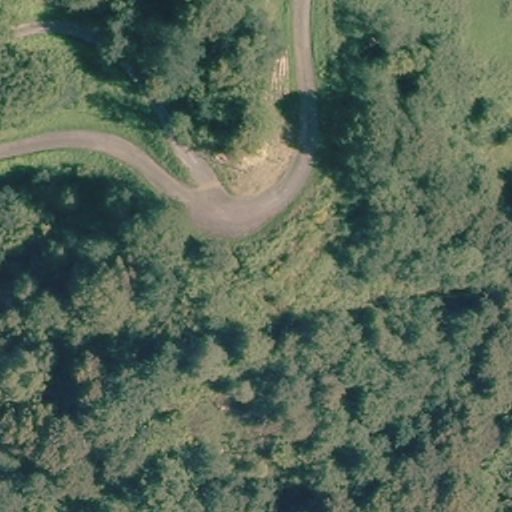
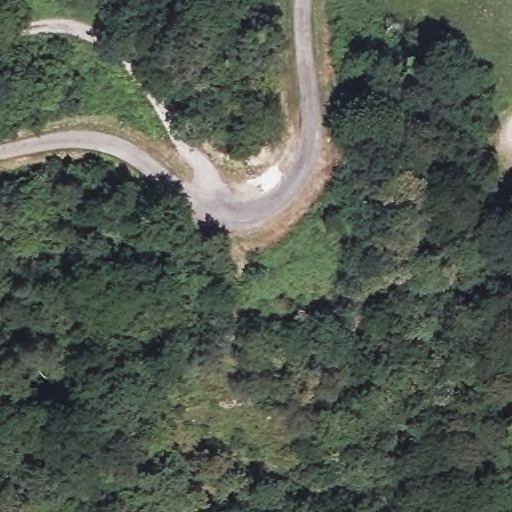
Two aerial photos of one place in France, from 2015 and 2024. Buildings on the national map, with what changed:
[]

